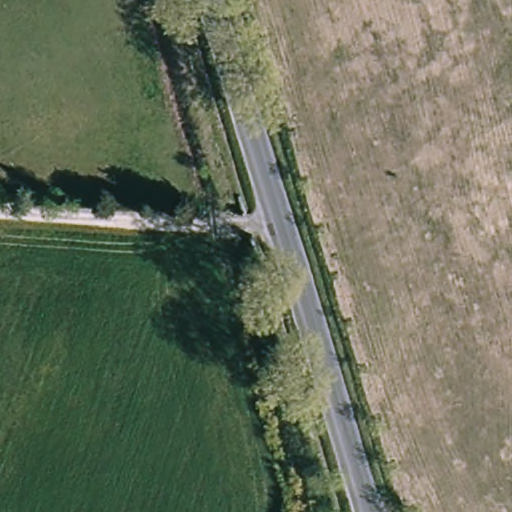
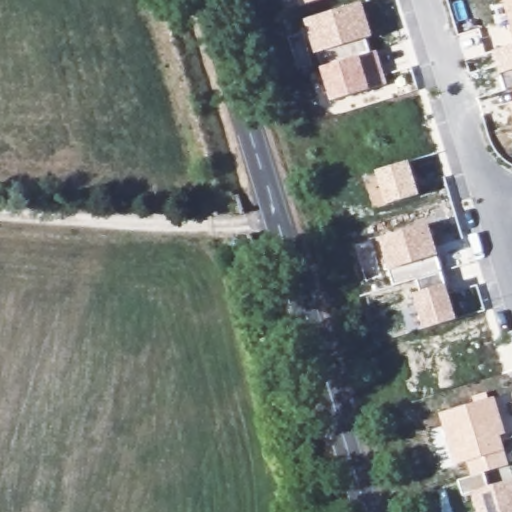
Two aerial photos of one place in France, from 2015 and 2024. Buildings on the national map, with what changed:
new [(307,5),(305,0),(323,0),(307,5)]
new [(512,30),(504,0),(512,0),(512,30)]
new [(366,39),(371,52),(377,51),(387,84),(371,89),(331,101),(305,20),(364,2),(374,36),(366,39)]
new [(501,75),(495,52),(512,46),(512,90),(506,91),(501,75)]
new [(512,102),(512,106),(511,102),(512,102)]
new [(388,205),(377,171),(410,160),(420,195),(388,205)]
new [(446,285),(457,319),(425,328),(415,295),(421,292),(417,278),(395,286),(390,270),(380,240),(430,223),(440,256),(446,285)]
new [(505,451),(510,465),(484,473),(488,487),(512,479),(512,512),(478,512),(472,494),(464,496),(458,481),(473,476),(468,461),(456,465),(440,415),(495,397),(505,433),(500,435),(505,451)]

